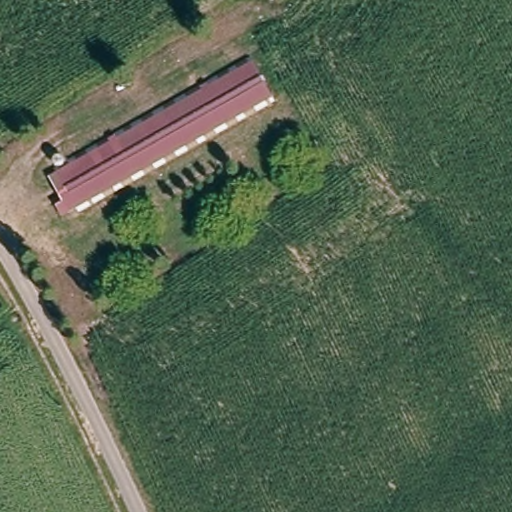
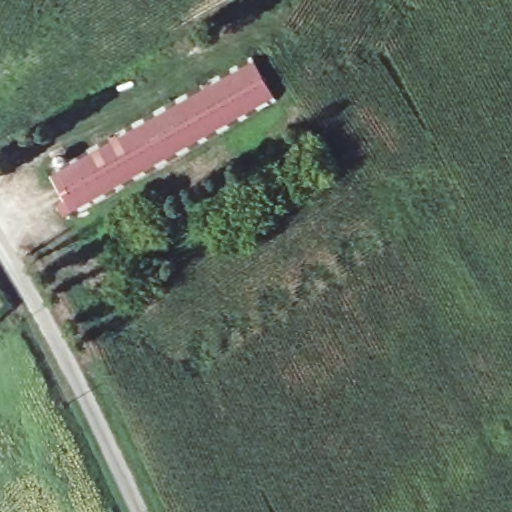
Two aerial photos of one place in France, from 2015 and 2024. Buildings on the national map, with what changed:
unchanged [(58,177),(56,175),(245,55),(272,97),(85,215),(84,212),(71,219),(64,208),(49,183),(58,177)]

